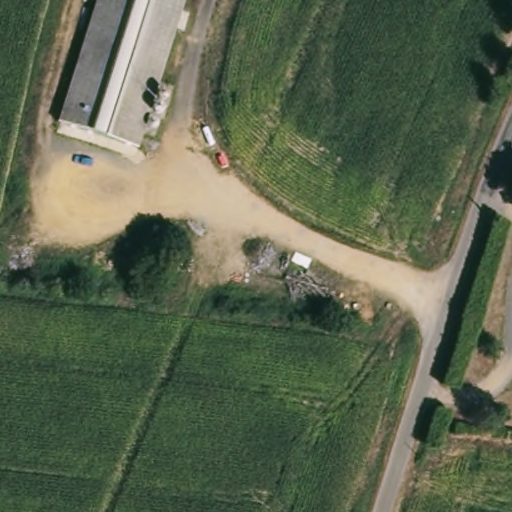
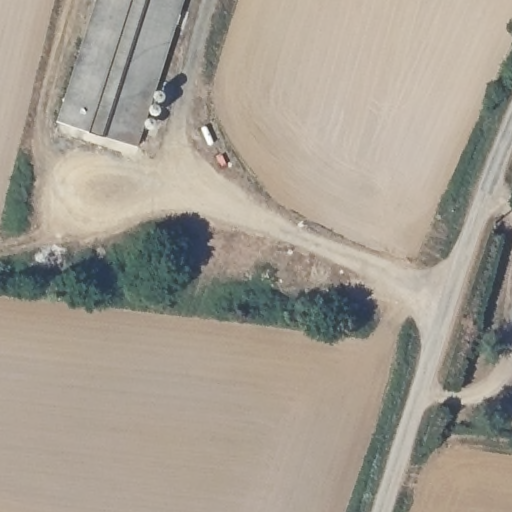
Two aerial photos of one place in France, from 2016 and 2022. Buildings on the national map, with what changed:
unchanged [(179,0),(134,146),(60,120),(99,0),(179,0)]

